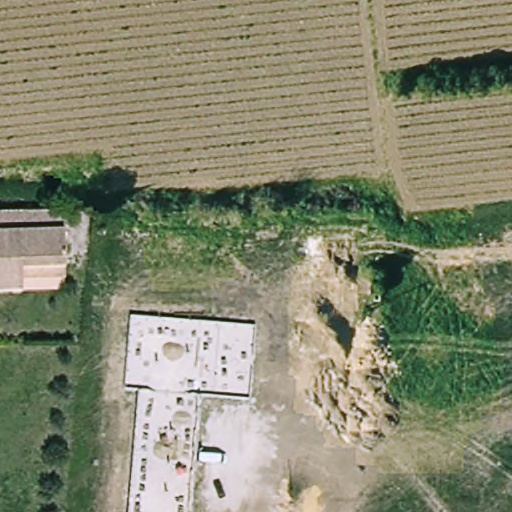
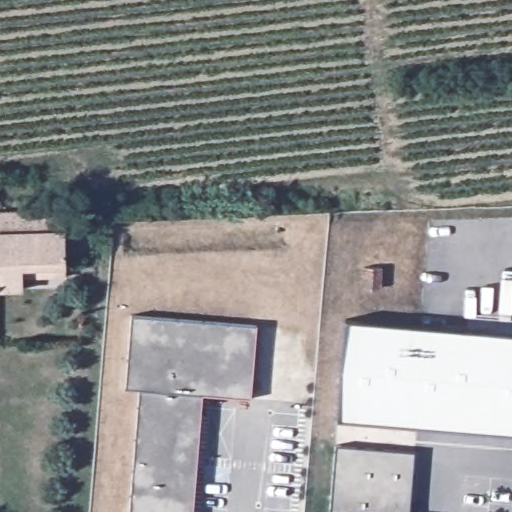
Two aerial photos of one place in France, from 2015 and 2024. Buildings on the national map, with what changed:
unchanged [(24,282),(24,292),(0,292),(0,215),(65,215),(65,218),(67,270),(67,280),(24,282)]
unchanged [(365,265),(388,268),(383,296),(363,291),(365,265)]
unchanged [(201,393),(191,512),(130,512),(140,389),(126,388),(133,317),(256,327),(250,397),(201,393)]
new [(347,322),(512,335),(512,432),(338,418),(347,322)]
new [(330,512),(336,447),(415,454),(409,512),(330,512)]

